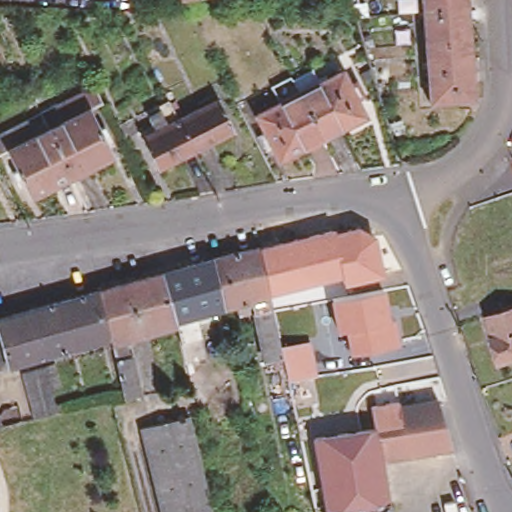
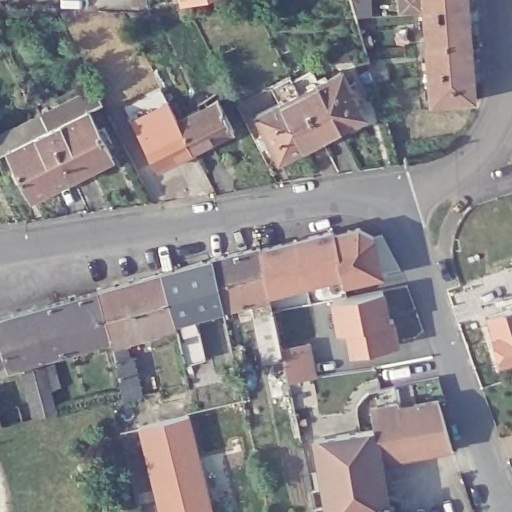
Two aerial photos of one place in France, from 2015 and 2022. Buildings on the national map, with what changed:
unchanged [(469,7),(471,39),(473,70),(475,97),(432,101),(429,72),(427,42),(424,10),(423,0),(468,0),(469,7)]
unchanged [(295,90),(338,68),(361,112),(317,135),(295,90)]
unchanged [(317,135),(275,155),(252,110),(295,90),(317,135)]
unchanged [(174,115),(214,95),(230,127),(190,147),(174,115)]
unchanged [(154,166),(137,133),(152,126),(142,107),(165,96),(174,115),(190,147),(154,166)]
unchanged [(95,97),(103,114),(90,120),(50,143),(42,125),(95,97)]
unchanged [(90,120),(114,168),(74,189),(50,143),(90,120)]
unchanged [(11,162),(0,167),(0,146),(42,125),(50,143),(11,162)]
unchanged [(74,189),(35,209),(11,162),(50,143),(74,189)]
unchanged [(269,383),(280,381),(279,370),(272,372),(271,362),(266,362),(254,301),(224,309),(214,261),(260,250),(283,359),(287,380),(291,396),(274,401),(269,383)]
unchanged [(224,309),(175,321),(162,275),(214,261),(224,309)]
unchanged [(162,275),(175,321),(177,328),(112,347),(110,340),(99,293),(162,275)]
unchanged [(330,300),(385,290),(390,320),(396,320),(400,345),(352,355),(347,330),(337,331),(330,300)]
unchanged [(9,369),(0,336),(0,321),(99,293),(110,340),(9,369)]
unchanged [(512,303),(512,356),(497,361),(480,310),(512,303)]
unchanged [(9,369),(0,372),(0,336),(9,369)]
unchanged [(207,360),(186,365),(181,344),(202,340),(207,360)]
unchanged [(25,405),(18,373),(46,365),(55,399),(120,381),(115,362),(133,358),(142,392),(124,396),(0,425),(0,412),(25,405)]
unchanged [(396,416),(395,399),(434,392),(449,438),(377,451),(374,420),(396,416)]
unchanged [(394,393),(395,399),(396,416),(374,420),(296,432),(291,410),(394,393)]
unchanged [(158,512),(135,424),(190,411),(214,512),(158,512)]
unchanged [(386,512),(313,512),(296,432),(374,420),(377,451),(386,512)]

